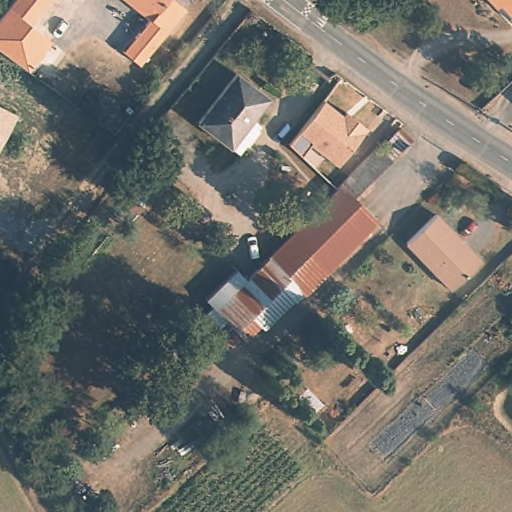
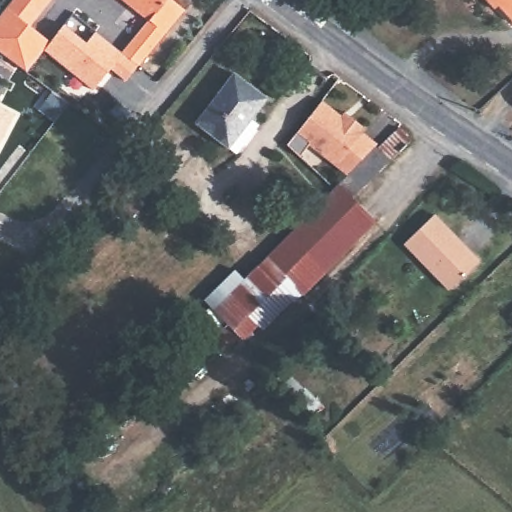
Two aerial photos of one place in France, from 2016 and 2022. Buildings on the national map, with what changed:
unchanged [(36,25),(57,41),(35,72),(0,47),(0,23),(17,0),(52,0),(36,25)]
unchanged [(185,9),(144,68),(126,55),(151,20),(124,0),(172,0),(185,9)]
unchanged [(512,12),(501,0),(512,0),(512,12)]
new [(57,41),(53,38),(64,25),(86,41),(96,30),(121,51),(149,18),(151,20),(126,55),(139,65),(125,81),(111,70),(93,90),(48,54),(57,41)]
unchanged [(225,144),(197,120),(237,75),(264,95),(225,144)]
unchanged [(344,115),(350,120),(364,133),(332,168),(305,144),(307,140),(295,130),(322,101),(341,118),(344,115)]
unchanged [(0,144),(0,105),(16,114),(0,144)]
unchanged [(350,183),(407,127),(419,139),(361,196),(383,220),(309,291),(273,255),(274,254),(347,180),(350,183)]
unchanged [(451,288),(407,241),(439,212),(483,260),(451,288)]
unchanged [(237,268),(248,280),(273,255),(309,291),(266,332),(246,311),(229,326),(205,300),(237,268)]

